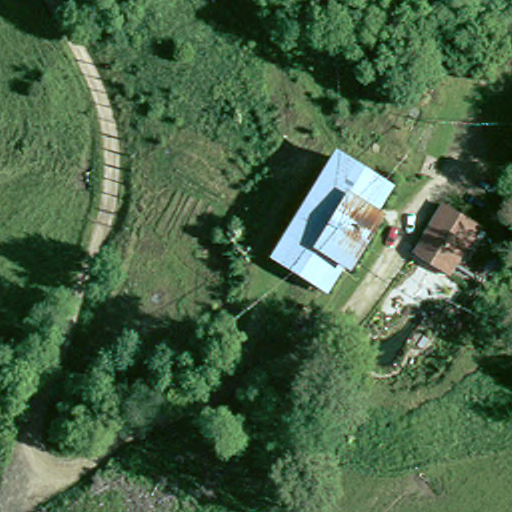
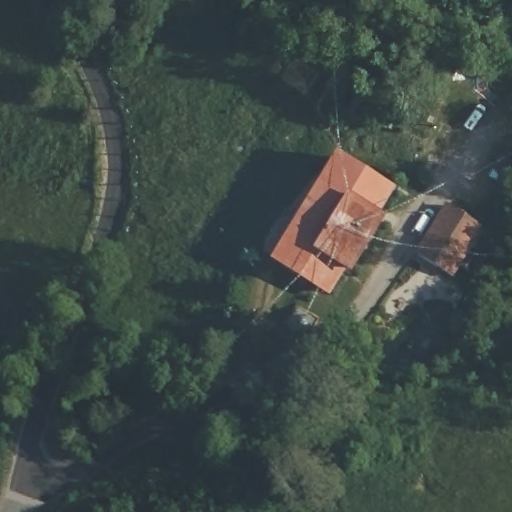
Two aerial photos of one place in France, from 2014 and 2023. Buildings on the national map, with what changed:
unchanged [(371,215),(377,218),(347,267),(340,263),(326,287),(277,256),(341,155),(377,178),(364,200),(376,207),(371,215)]
unchanged [(479,225),(476,231),(446,279),(412,258),(445,204),(479,225)]

